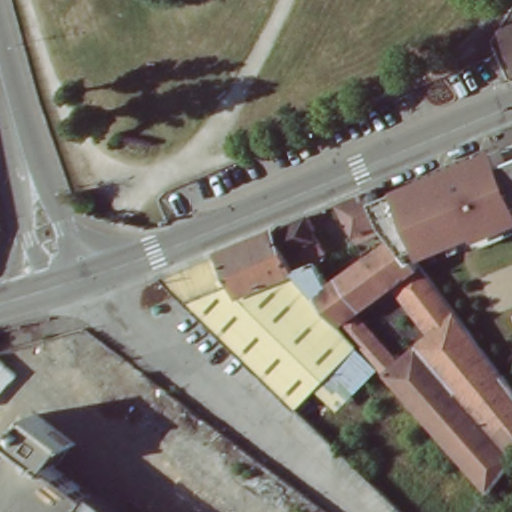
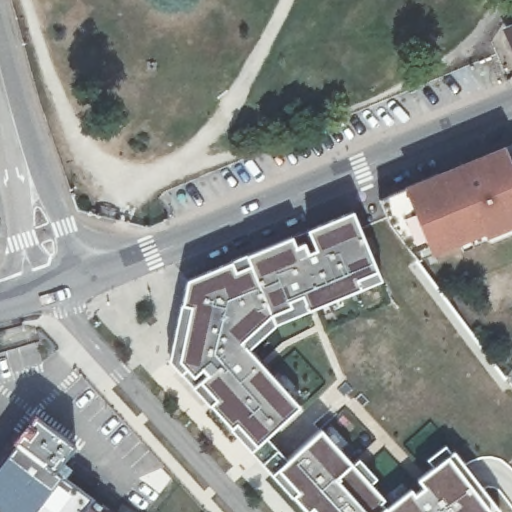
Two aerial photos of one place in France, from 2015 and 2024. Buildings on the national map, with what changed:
unchanged [(506,27),(512,24),(512,41),(506,27)]
unchanged [(465,250),(461,242),(458,243),(416,261),(400,242),(393,225),(386,209),(510,157),(510,156),(511,159),(512,161),(512,230),(465,250)]
new [(356,207),(379,268),(362,277),(365,285),(310,307),(305,294),(291,299),(295,305),(274,311),(246,338),(301,402),(252,448),(173,357),(188,277),(356,207)]
demolished [(416,261),(426,273),(470,324),(512,374),(512,463),(491,492),(489,494),(487,493),(421,416),(407,400),(365,352),(351,334),(337,318),(302,277),(289,247),(282,232),(315,219),(333,262),(324,266),(334,288),(400,242),(416,261)]
demolished [(299,410),(286,397),(285,397),(168,280),(282,232),(289,247),(302,277),(337,318),(351,334),(365,352),(299,410)]
unchanged [(36,401),(57,418),(57,420),(58,423),(59,429),(47,449),(67,464),(68,466),(70,476),(70,477),(71,478),(77,512),(20,512),(0,496),(0,454),(20,428),(17,426),(36,401)]
new [(394,487),(447,446),(497,511),(496,512),(307,512),(272,473),(331,418),(394,487)]
demolished [(64,448),(61,435),(68,441),(64,450),(64,448)]
unchanged [(70,477),(116,512),(77,512),(71,478),(70,477)]

